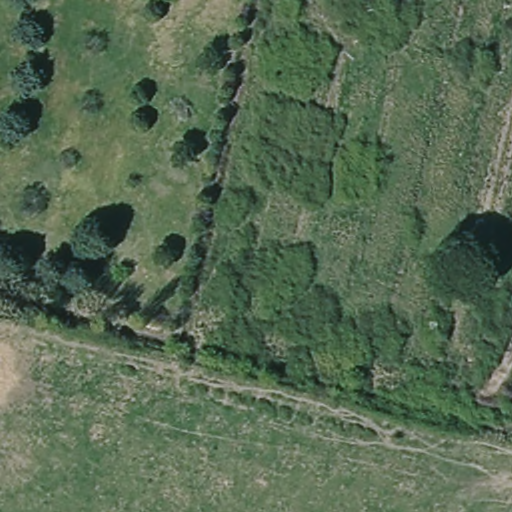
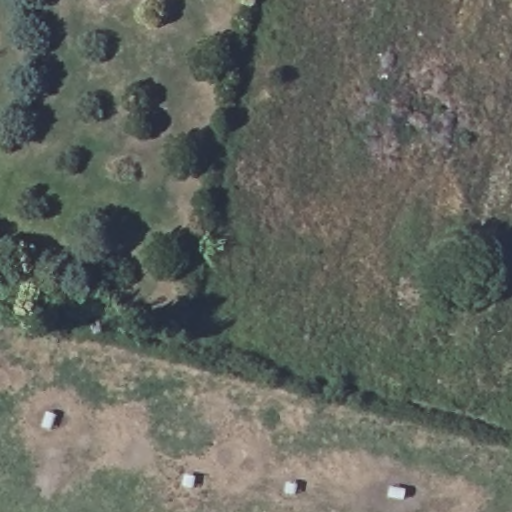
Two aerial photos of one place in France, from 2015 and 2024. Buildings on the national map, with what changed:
[]

